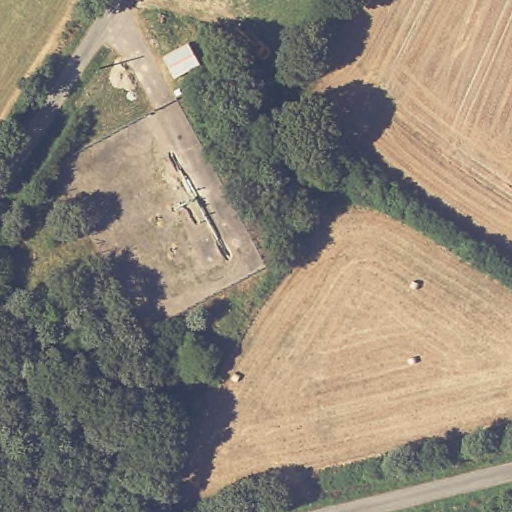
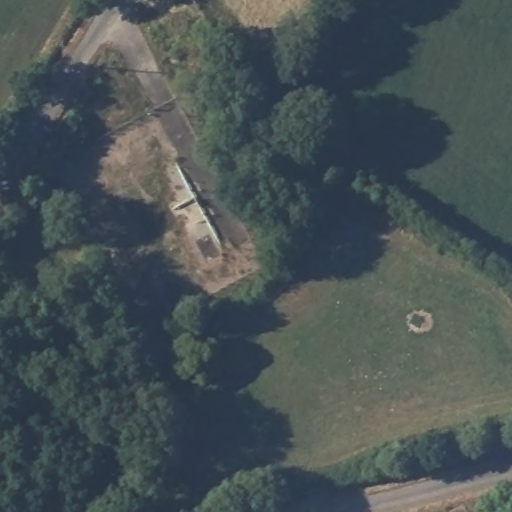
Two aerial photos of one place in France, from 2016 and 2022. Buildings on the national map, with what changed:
[]

